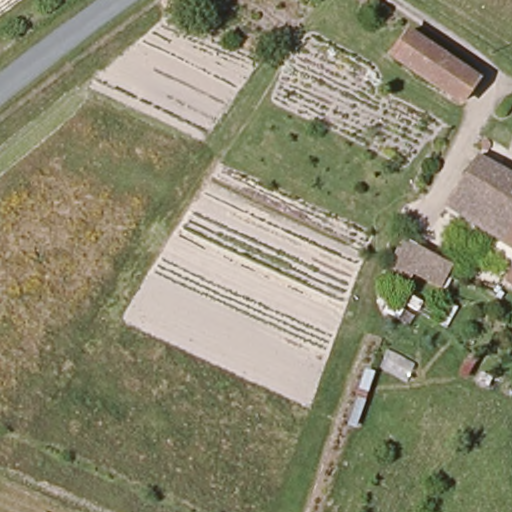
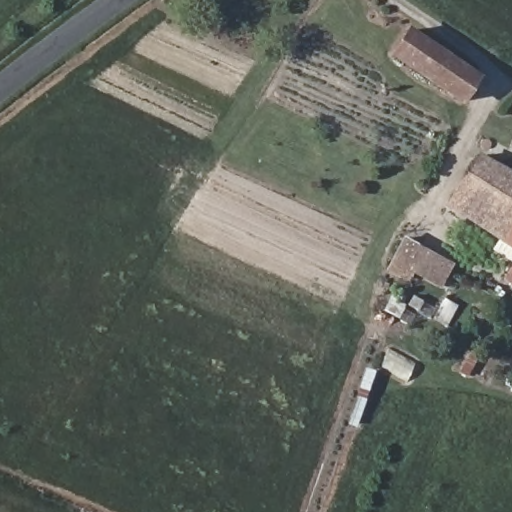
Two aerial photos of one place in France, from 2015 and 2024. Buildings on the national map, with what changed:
unchanged [(480,74),(467,99),(399,56),(414,31),(480,74)]
unchanged [(482,156),(512,174),(512,246),(451,207),(482,156)]
unchanged [(443,291),(397,264),(407,239),(461,265),(443,291)]

